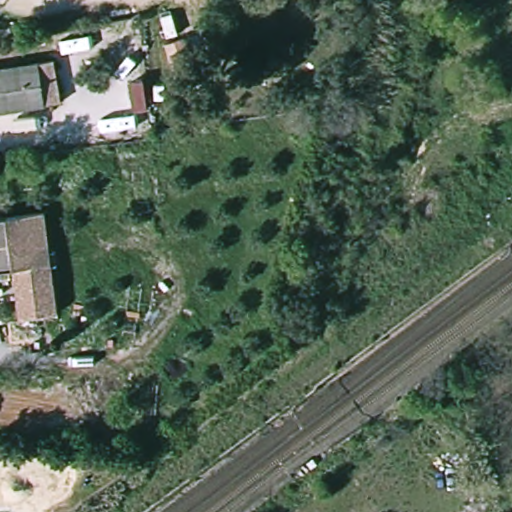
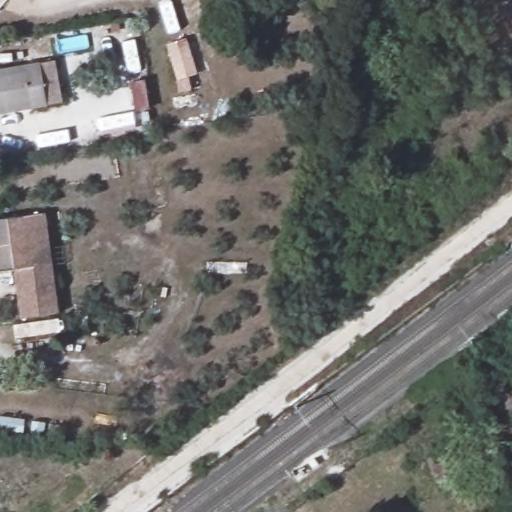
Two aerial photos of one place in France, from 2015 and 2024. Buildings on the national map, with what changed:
unchanged [(196,74),(177,80),(167,44),(185,39),(196,74)]
unchanged [(0,120),(0,78),(53,69),(60,110),(0,120)]
unchanged [(62,301),(8,308),(4,279),(0,280),(0,228),(52,222),(62,301)]

